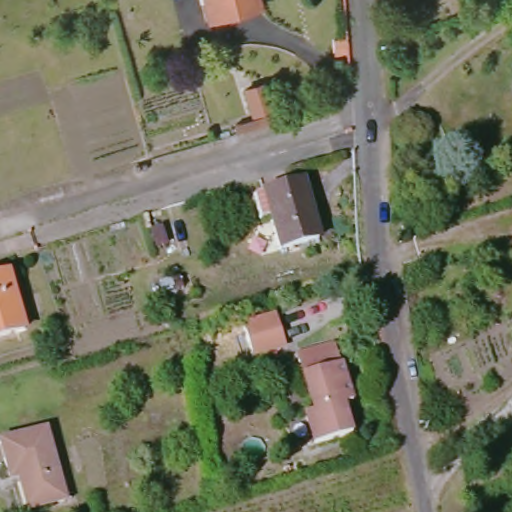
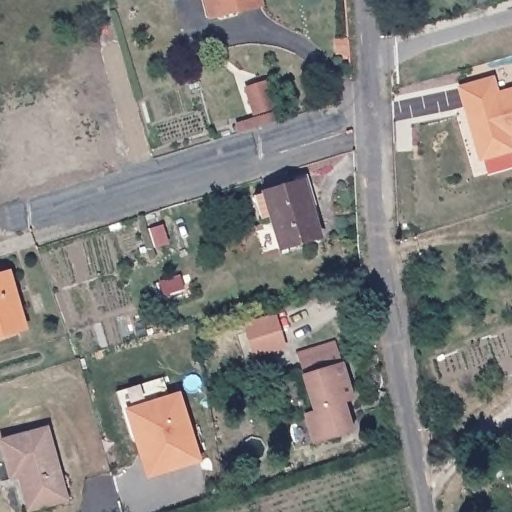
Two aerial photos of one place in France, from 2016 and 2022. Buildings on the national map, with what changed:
unchanged [(206,19),(202,0),(256,0),(257,5),(206,19)]
new [(457,88),(495,76),(499,91),(512,88),(512,136),(512,150),(477,159),(457,88)]
unchanged [(264,79),(278,121),(233,136),(231,124),(247,117),(240,89),(264,79)]
unchanged [(276,249),(266,217),(246,223),(239,200),(291,183),(299,181),(306,203),(318,237),(276,249)]
unchanged [(1,277),(18,332),(0,337),(0,277),(1,277)]
unchanged [(242,328),(276,318),(286,352),(252,362),(242,328)]
unchanged [(292,354),(331,342),(333,347),(350,398),(341,402),(350,429),(311,442),(301,412),(310,409),(294,361),(292,354)]
new [(146,480),(125,409),(181,392),(201,462),(146,480)]
unchanged [(8,482),(0,453),(0,442),(40,429),(64,501),(33,511),(29,512),(18,512),(8,482)]

